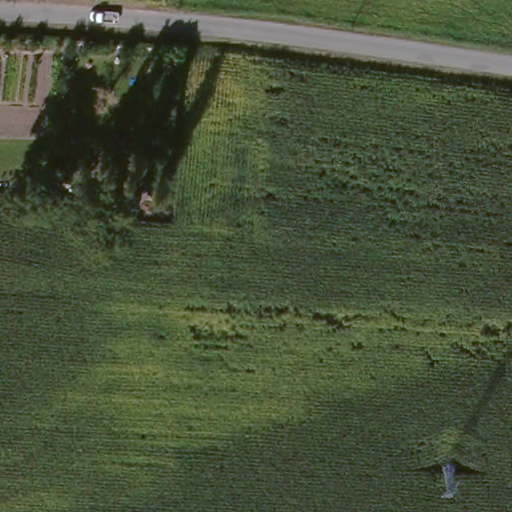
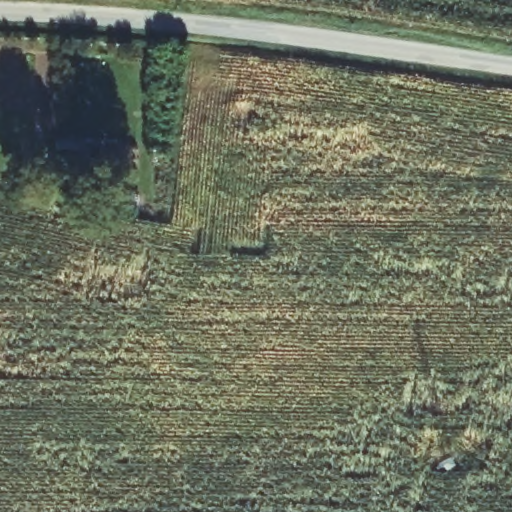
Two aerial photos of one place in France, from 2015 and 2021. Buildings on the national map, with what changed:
unchanged [(58,142),(91,145),(90,158),(57,156),(58,142)]

